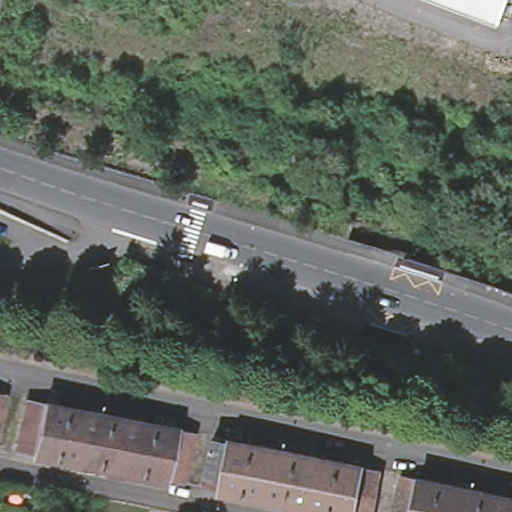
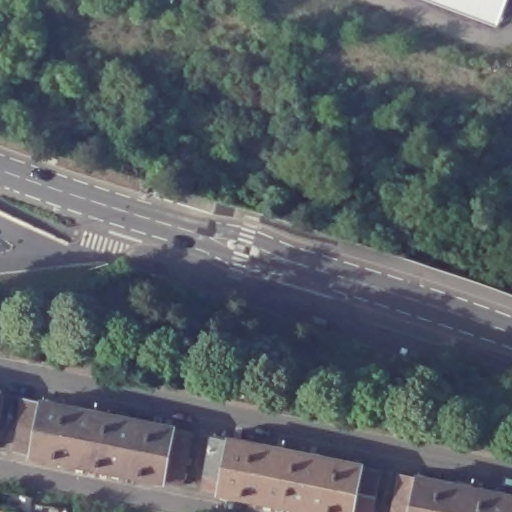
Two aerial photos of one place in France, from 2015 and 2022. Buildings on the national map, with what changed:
unchanged [(499,28),(424,0),(509,0),(499,28)]
unchanged [(120,263),(157,276),(155,280),(117,292),(108,268),(120,263)]
unchanged [(0,437),(0,387),(10,390),(0,437)]
unchanged [(17,449),(29,394),(45,397),(66,402),(60,431),(85,436),(80,462),(35,452),(17,449)]
unchanged [(100,466),(80,462),(85,436),(60,431),(66,402),(112,411),(100,466)]
unchanged [(126,442),(121,470),(100,466),(112,411),(155,419),(150,447),(126,442)]
unchanged [(182,482),(167,479),(121,470),(126,442),(150,447),(155,419),(178,423),(195,427),(182,482)]
unchanged [(273,498),(227,490),(210,487),(222,432),(237,435),(260,439),(254,466),(278,472),(273,498)]
unchanged [(293,502),(273,498),(278,472),(254,466),(260,439),(305,448),(293,502)]
unchanged [(319,480),(313,507),(293,502),(305,448),(349,457),(343,485),(319,480)]
unchanged [(341,512),(313,507),(319,480),(343,485),(349,457),(370,462),(387,466),(378,512),(341,512)]
unchanged [(400,512),(409,471),(424,473),(446,477),(441,503),(465,509),(464,512),(400,512)]
unchanged [(441,503),(446,477),(492,487),(486,512),(464,512),(465,509),(441,503)]
unchanged [(512,491),(512,512),(486,512),(492,487),(512,491)]

